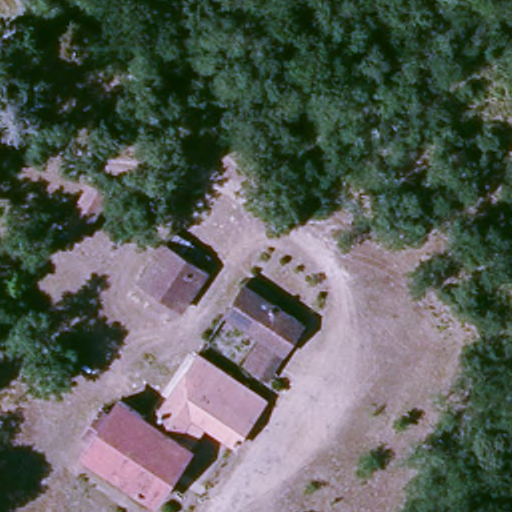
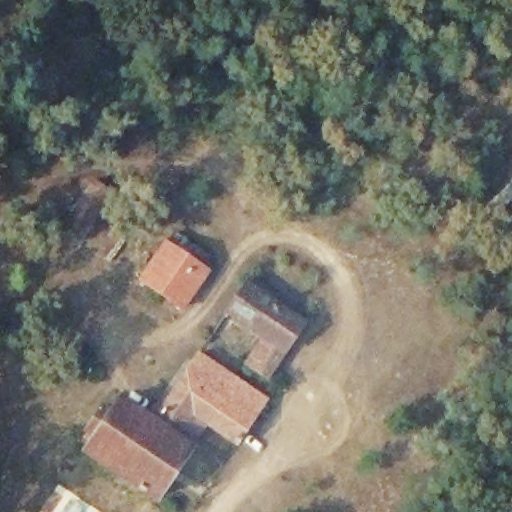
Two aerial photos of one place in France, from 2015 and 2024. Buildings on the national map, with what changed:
unchanged [(286,185),(267,210),(241,185),(259,163),(286,185)]
unchanged [(116,195),(87,233),(68,215),(96,180),(101,184),(116,195)]
unchanged [(216,259),(177,308),(144,280),(181,232),(216,259)]
unchanged [(241,372),(261,342),(237,322),(266,280),(294,303),(287,314),(304,325),(260,386),(241,372)]
unchanged [(242,447),(219,427),(200,411),(174,443),(195,457),(157,504),(84,453),(97,438),(88,431),(104,406),(116,412),(123,401),(140,415),(152,400),(165,408),(207,350),(279,402),(242,447)]

